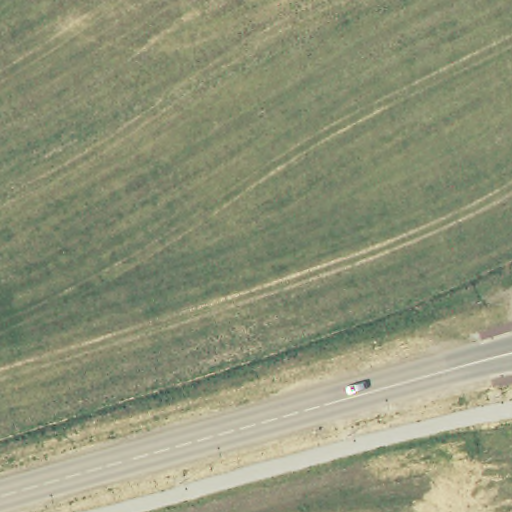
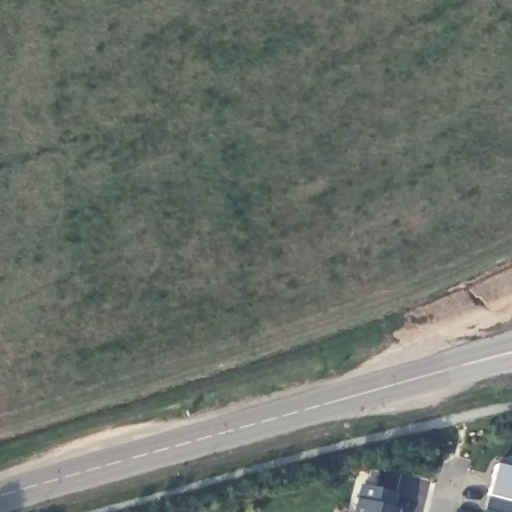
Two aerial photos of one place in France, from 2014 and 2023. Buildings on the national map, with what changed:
new [(487,495),(496,464),(499,459),(512,456),(512,512),(490,512),(482,510),(487,495)]
new [(400,492),(396,508),(400,509),(400,512),(353,512),(360,484),(400,492)]
new [(482,510),(490,512),(482,512),(482,510)]

